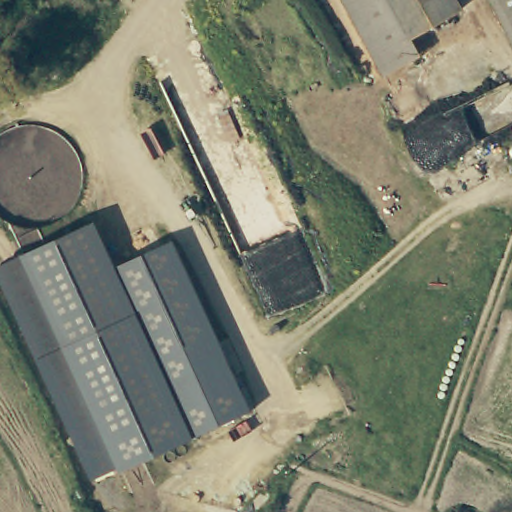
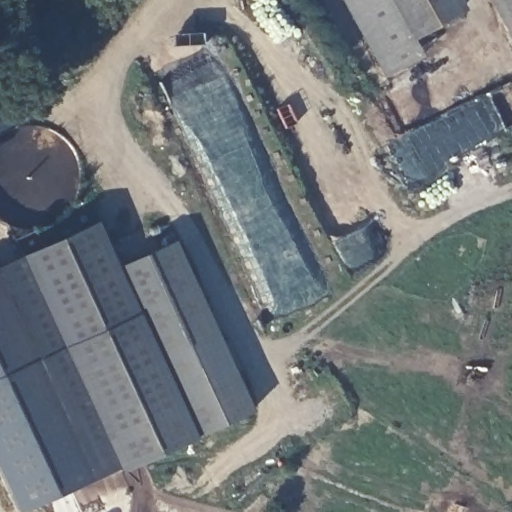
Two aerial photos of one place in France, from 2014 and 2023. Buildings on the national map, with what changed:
unchanged [(372,55),(341,0),(387,0),(407,35),(407,36),(418,56),(383,76),(372,55)]
unchanged [(453,8),(436,19),(407,36),(407,35),(387,0),(448,0),(453,8)]
unchanged [(496,0),(512,0),(512,34),(496,0)]
unchanged [(0,282),(0,269),(97,220),(117,267),(175,241),(252,411),(93,481),(0,282)]
new [(20,512),(0,469),(0,282),(93,481),(24,512),(20,512)]

